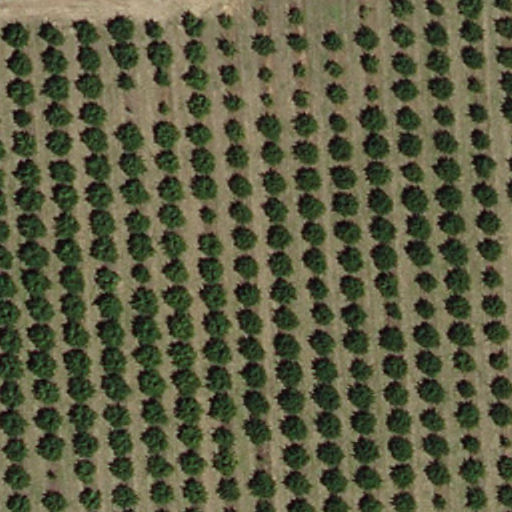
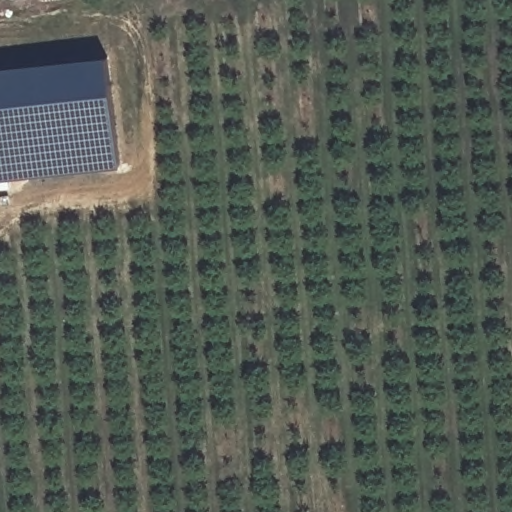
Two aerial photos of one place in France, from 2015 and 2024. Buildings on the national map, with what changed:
new [(119,168),(0,180),(0,67),(108,55),(119,168)]

